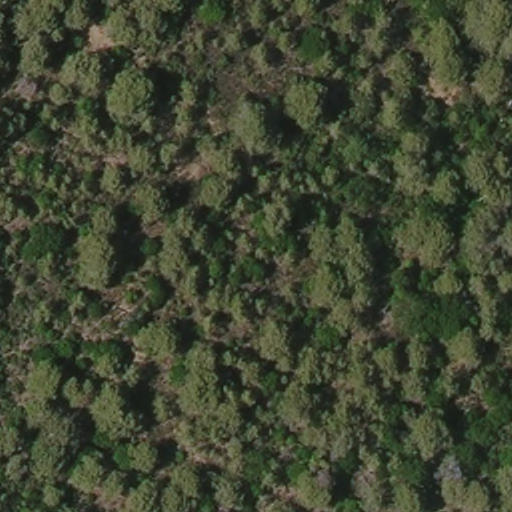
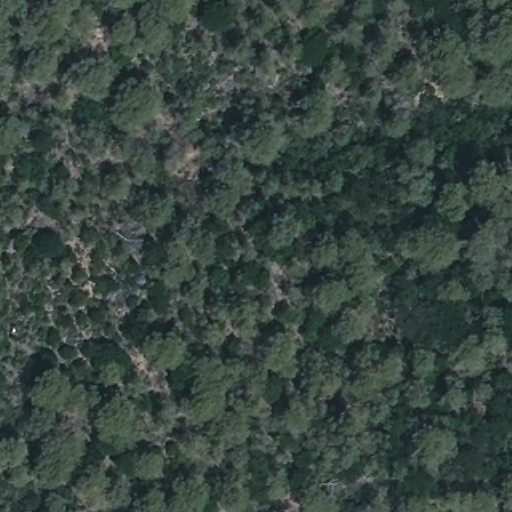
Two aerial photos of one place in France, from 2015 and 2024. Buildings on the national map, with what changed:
[]

